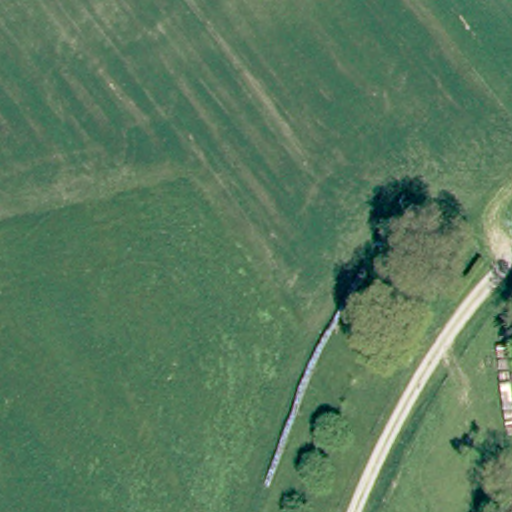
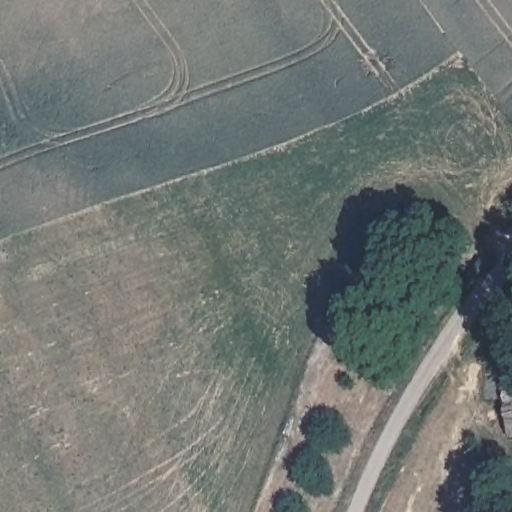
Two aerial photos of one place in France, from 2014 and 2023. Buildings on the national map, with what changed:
[]

